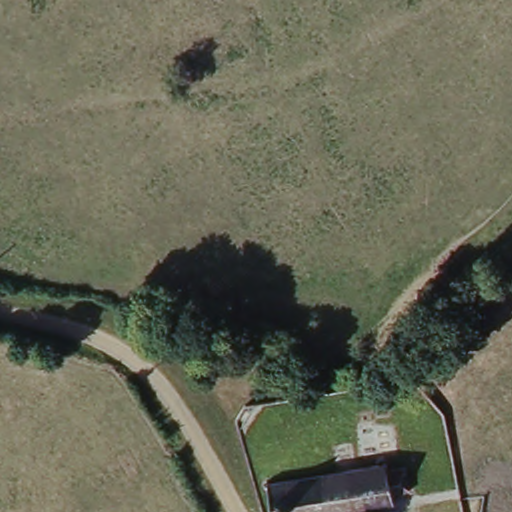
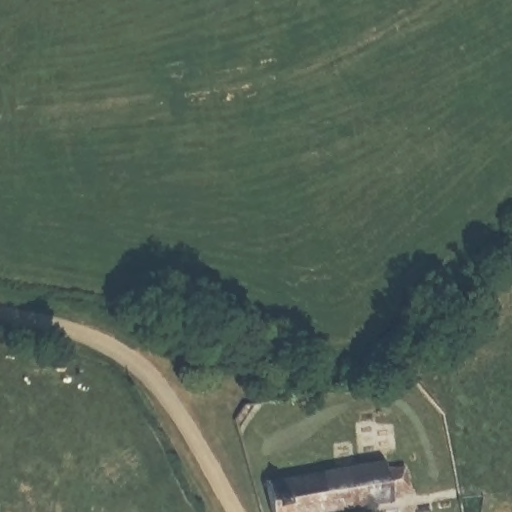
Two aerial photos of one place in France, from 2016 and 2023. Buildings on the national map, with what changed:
unchanged [(382,456),(388,462),(400,462),(404,481),(386,487),(385,494),(290,512),(271,512),(261,478),(382,456)]

